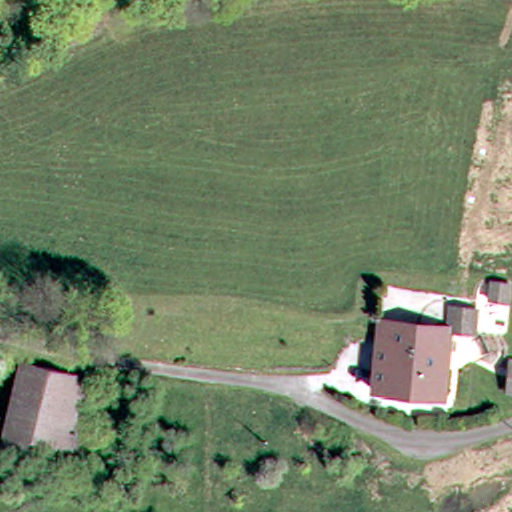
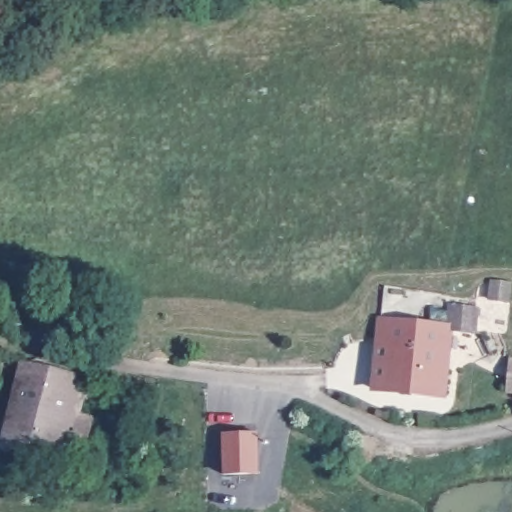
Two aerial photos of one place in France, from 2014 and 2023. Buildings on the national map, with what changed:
unchanged [(462,302),(462,325),(436,325),(438,301),(462,302)]
unchanged [(436,325),(430,391),(359,383),(368,316),(436,325)]
unchanged [(74,448),(62,445),(0,429),(0,412),(12,358),(76,372),(92,376),(86,398),(70,395),(65,412),(70,412),(82,415),(74,448)]
unchanged [(508,391),(512,363),(512,391),(508,391)]
new [(258,476),(222,477),(222,433),(257,432),(258,476)]

